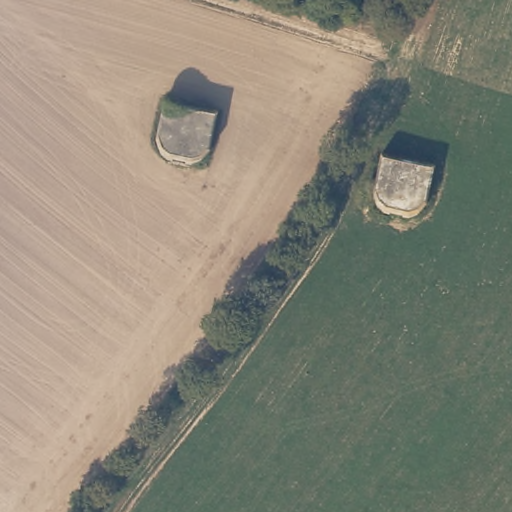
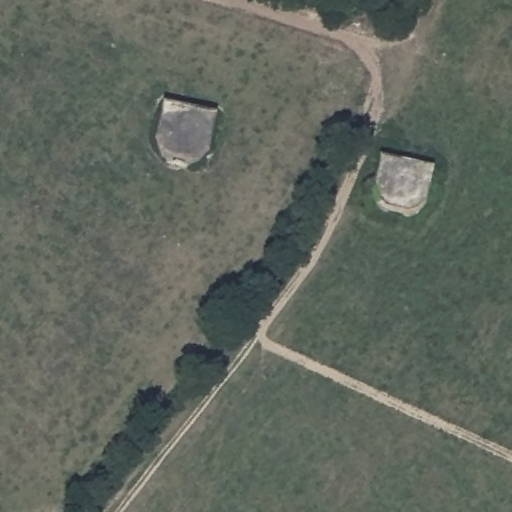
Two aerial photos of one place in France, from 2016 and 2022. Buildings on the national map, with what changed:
unchanged [(166,103),(213,112),(201,167),(166,159),(158,137),(166,103)]
unchanged [(388,206),(380,186),(386,163),(387,159),(432,171),(423,199),(407,211),(388,206)]

